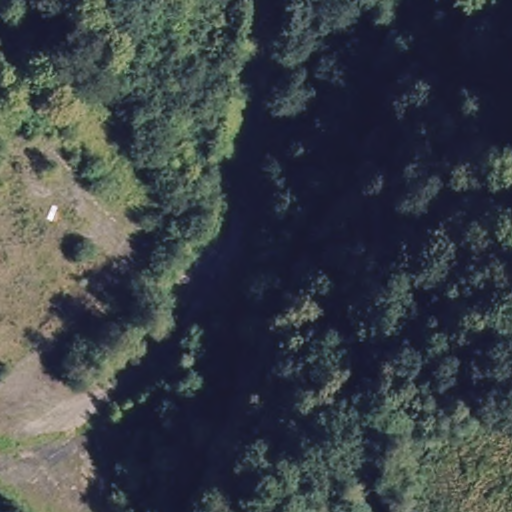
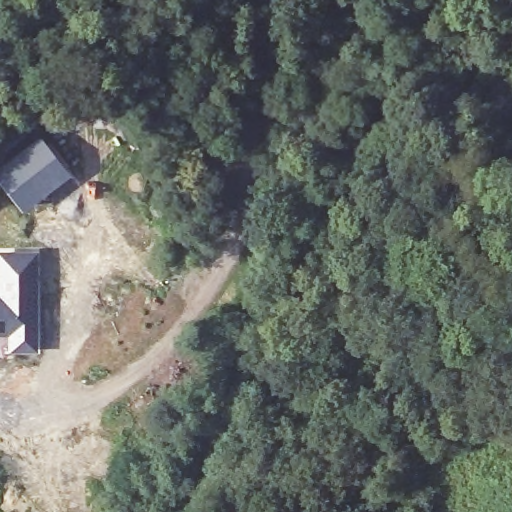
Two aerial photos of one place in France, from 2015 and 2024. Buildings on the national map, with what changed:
new [(79,185),(53,201),(50,198),(26,214),(0,181),(0,161),(39,132),(79,185)]
new [(59,347),(42,347),(42,350),(0,353),(0,248),(59,247),(59,347)]

